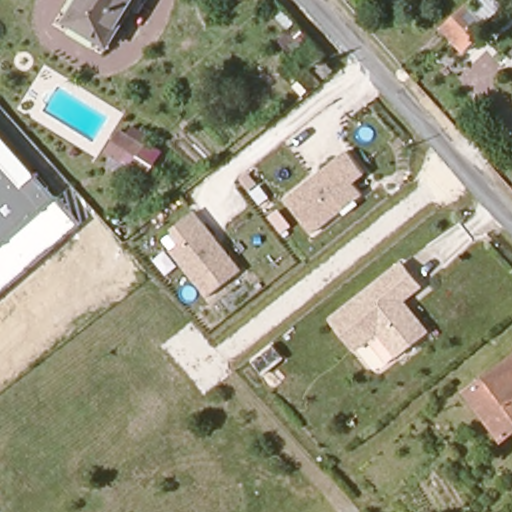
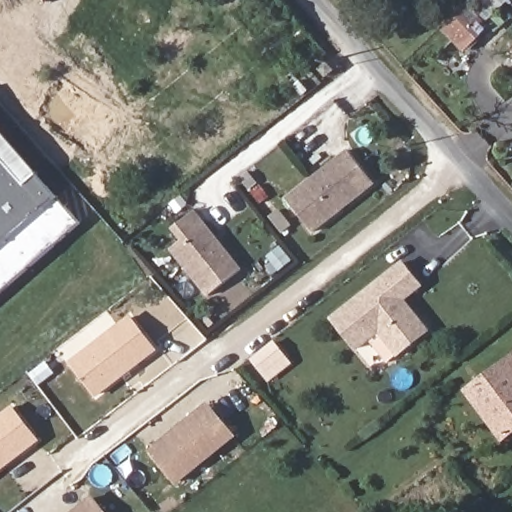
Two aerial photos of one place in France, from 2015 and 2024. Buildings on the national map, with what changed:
unchanged [(70,21),(82,0),(137,0),(110,43),(70,21)]
unchanged [(460,0),(465,0),(483,21),(458,43),(438,20),(454,6),(460,0)]
unchanged [(327,76),(322,70),(329,64),(335,71),(327,76)]
unchanged [(150,139),(133,167),(109,152),(124,126),(150,139)]
unchanged [(37,172),(24,183),(0,154),(0,127),(37,172)]
unchanged [(285,200),(345,152),(371,184),(313,232),(285,200)]
unchanged [(60,198),(54,203),(0,248),(0,154),(24,183),(37,172),(60,198)]
unchanged [(80,223),(0,294),(0,248),(54,203),(60,198),(80,223)]
unchanged [(207,297),(170,251),(180,241),(175,226),(195,211),(240,270),(207,297)]
unchanged [(401,303),(427,334),(395,357),(378,334),(355,353),(330,322),(401,266),(420,288),(401,303)]
new [(97,398),(70,362),(130,315),(157,350),(97,398)]
new [(267,382),(260,373),(250,360),(271,343),(281,357),(288,365),(267,382)]
unchanged [(468,389),(512,356),(512,430),(505,436),(468,389)]
new [(177,485),(150,450),(209,402),(237,437),(177,485)]
new [(0,471),(0,415),(12,405),(40,440),(0,471)]
new [(93,495),(107,512),(72,512),(93,495)]

